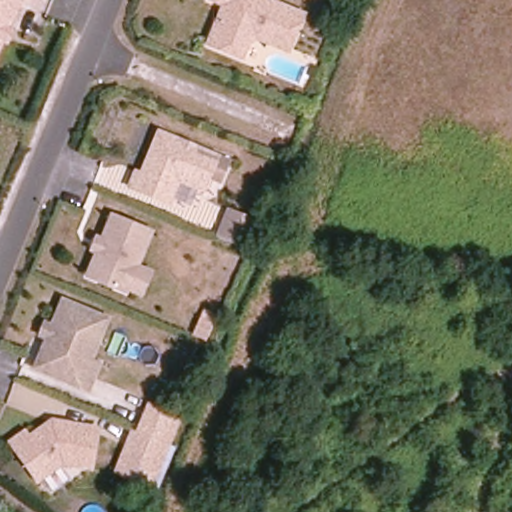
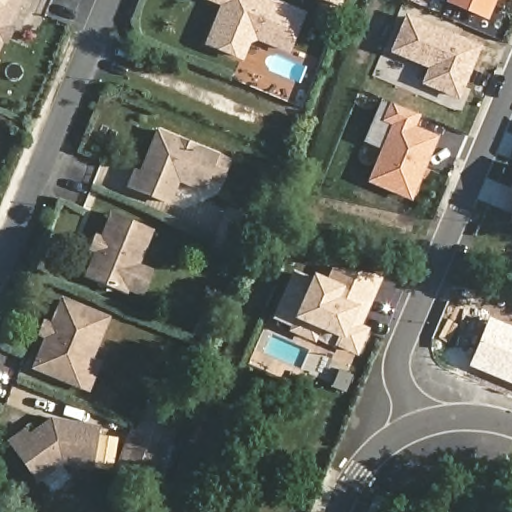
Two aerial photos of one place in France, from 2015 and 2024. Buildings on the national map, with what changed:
unchanged [(11,42),(6,40),(0,54),(0,0),(23,0),(11,29),(16,31),(11,42)]
unchanged [(290,45),(254,32),(244,52),(210,38),(227,0),(280,0),(306,10),(290,45)]
new [(487,21),(445,3),(446,0),(496,0),(487,21)]
new [(505,0),(507,0),(507,1),(505,0)]
new [(460,101),(420,84),(427,69),(389,53),(405,14),(482,46),(460,101)]
demolished [(314,68),(304,86),(270,69),(281,50),(314,68)]
new [(415,127),(438,137),(412,201),(367,183),(391,126),(382,122),(390,102),(421,115),(415,127)]
unchanged [(183,180),(177,196),(173,206),(135,191),(139,181),(149,158),(159,131),(222,155),(232,159),(224,180),(213,176),(207,189),(183,180)]
unchanged [(247,243),(219,233),(218,233),(226,214),(229,205),(242,210),(265,219),(261,228),(254,246),(247,243)]
unchanged [(145,293),(131,288),(130,291),(92,276),(99,258),(93,255),(100,237),(106,239),(115,216),(155,230),(140,265),(154,271),(145,293)]
new [(512,216),(512,224),(510,224),(512,216)]
new [(362,325),(370,328),(358,357),(335,347),(336,336),(318,330),(316,344),(288,332),(291,327),(272,319),(294,270),(312,278),(313,274),(327,278),(334,268),(383,277),(362,325)]
unchanged [(90,392),(78,388),(36,371),(62,304),(110,320),(92,363),(99,364),(90,392)]
new [(491,316),(512,325),(512,384),(469,366),(491,316)]
unchanged [(121,472),(115,469),(133,427),(139,429),(149,403),(179,415),(169,441),(151,484),(121,472)]
unchanged [(97,462),(65,459),(43,474),(17,435),(31,425),(37,431),(57,418),(80,419),(84,423),(102,423),(97,462)]

